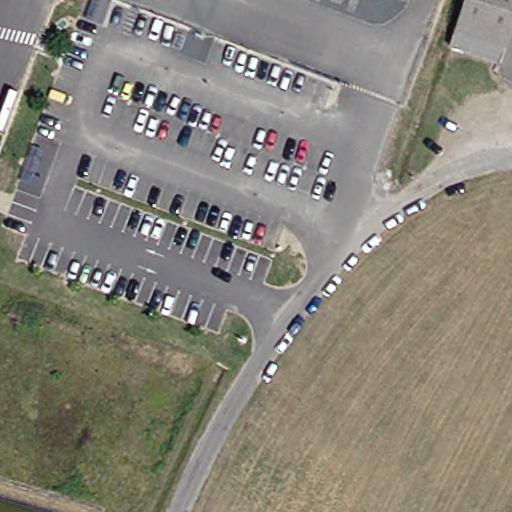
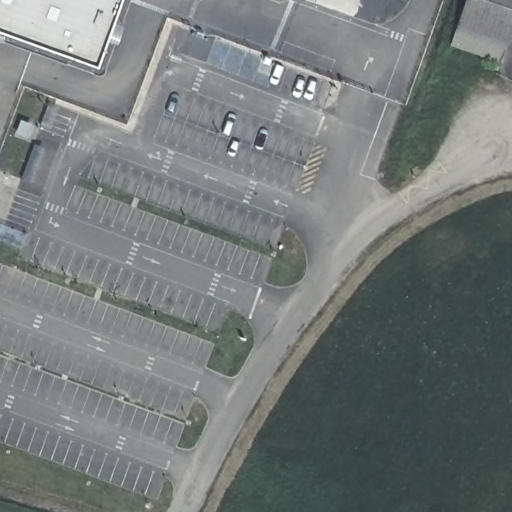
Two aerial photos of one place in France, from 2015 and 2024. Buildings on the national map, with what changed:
new [(0,35),(0,0),(122,0),(98,70),(0,35)]
new [(310,0),(316,0),(315,2),(310,0)]
unchanged [(447,29),(457,0),(511,0),(496,46),(447,29)]

